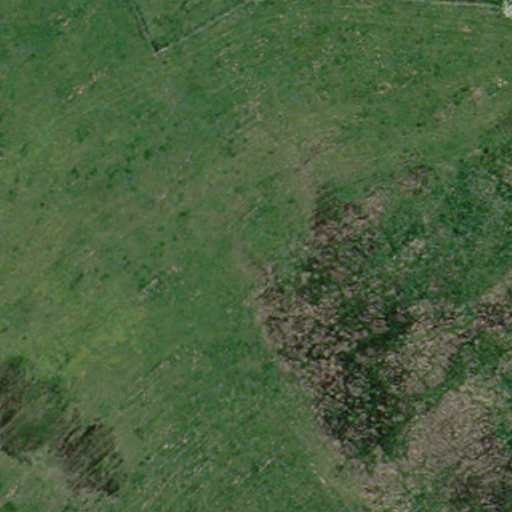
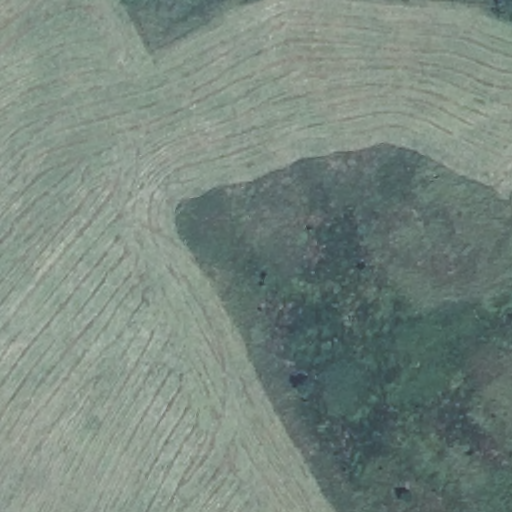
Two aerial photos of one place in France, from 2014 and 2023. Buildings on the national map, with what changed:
[]

